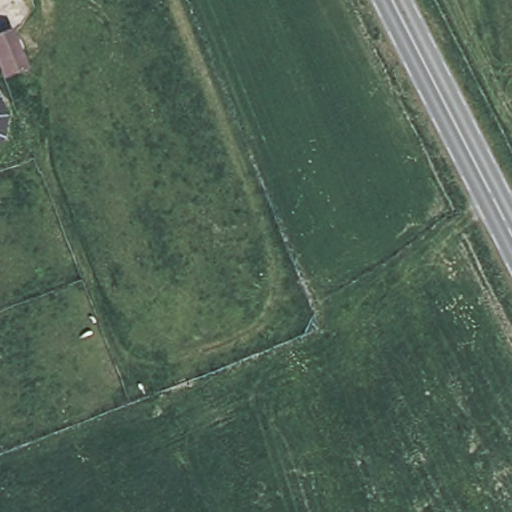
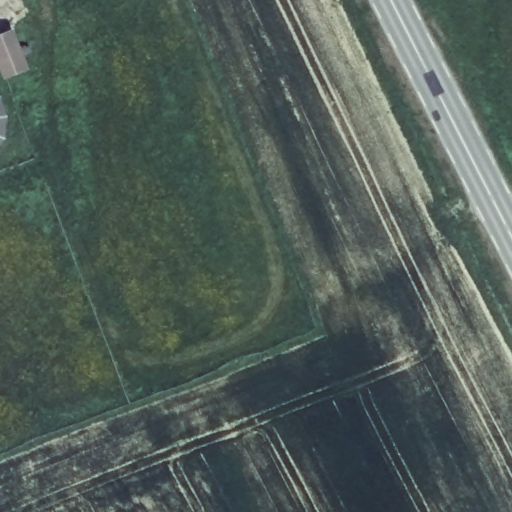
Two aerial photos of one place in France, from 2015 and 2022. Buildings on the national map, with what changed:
unchanged [(30,70),(4,80),(0,68),(0,35),(14,30),(30,70)]
unchanged [(8,118),(6,139),(0,150),(0,95),(0,96),(8,118)]

